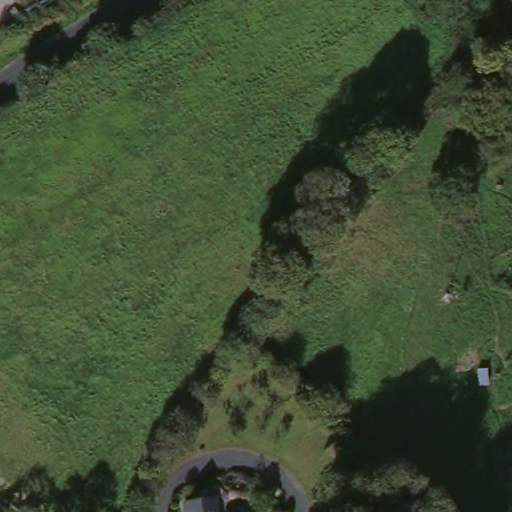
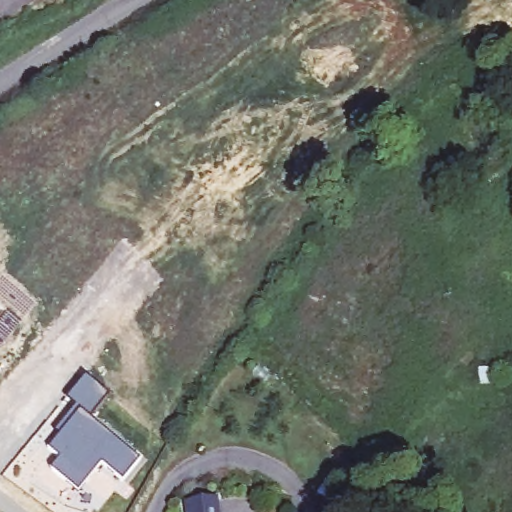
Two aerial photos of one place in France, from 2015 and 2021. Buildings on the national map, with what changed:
new [(0,348),(0,301),(23,320),(0,348)]
new [(76,404),(67,397),(86,374),(110,394),(91,417),(81,408),(59,434),(55,430),(76,404)]
new [(59,434),(81,408),(91,417),(142,459),(124,480),(103,463),(79,491),(51,466),(60,456),(49,447),(59,434)]
unchanged [(194,512),(193,493),(225,491),(226,512),(194,512)]

